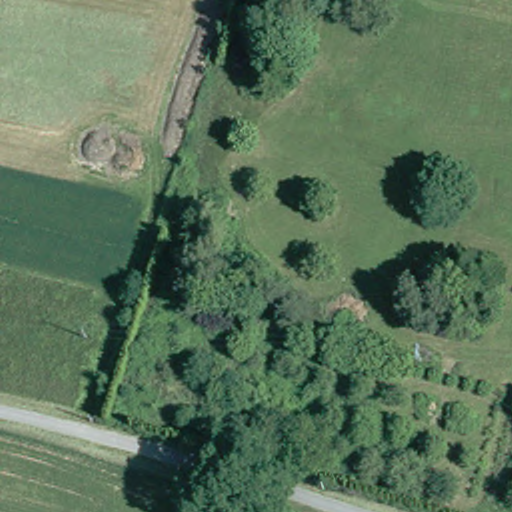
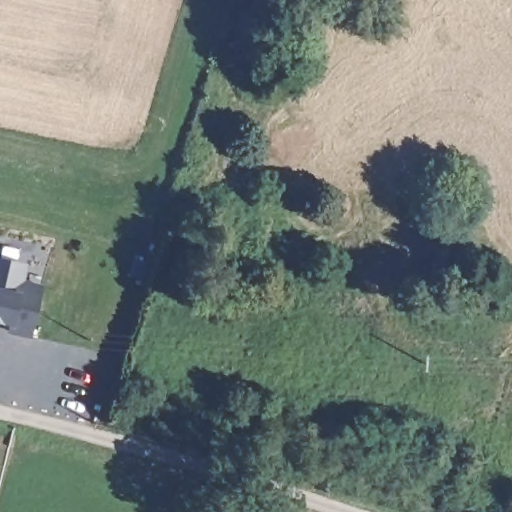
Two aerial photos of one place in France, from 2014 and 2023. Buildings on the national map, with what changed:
new [(25,283),(42,286),(31,340),(7,334),(10,327),(0,325),(0,259),(29,266),(25,283)]

